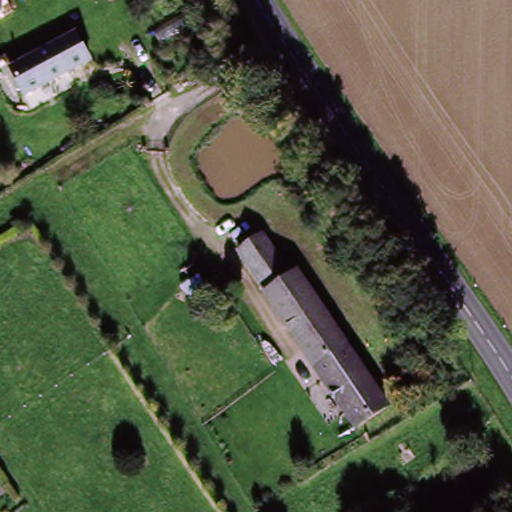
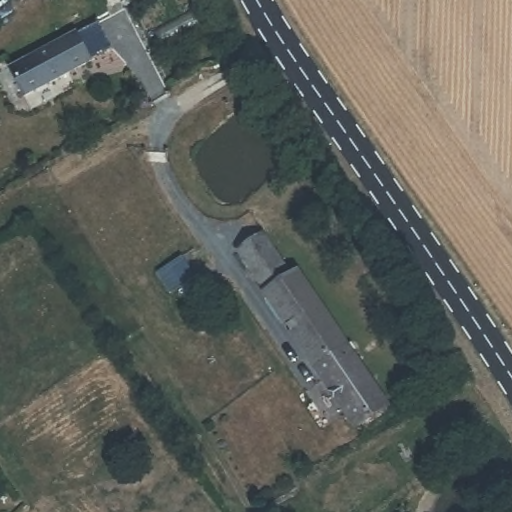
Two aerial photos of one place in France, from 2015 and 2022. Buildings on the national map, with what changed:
unchanged [(25,99),(10,70),(77,34),(92,63),(25,99)]
unchanged [(232,266),(258,242),(285,281),(291,278),(296,282),(342,343),(385,401),(375,408),(394,431),(370,446),(232,266)]

